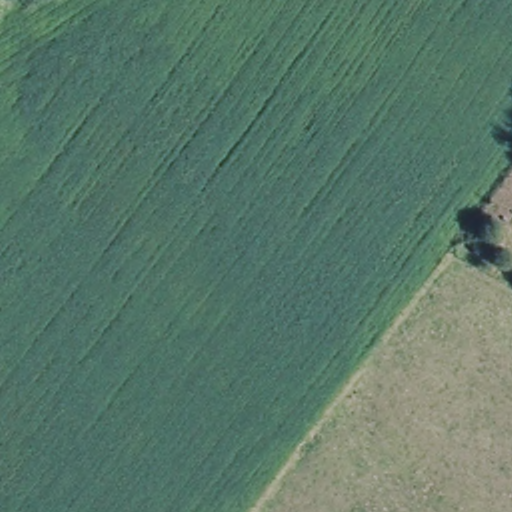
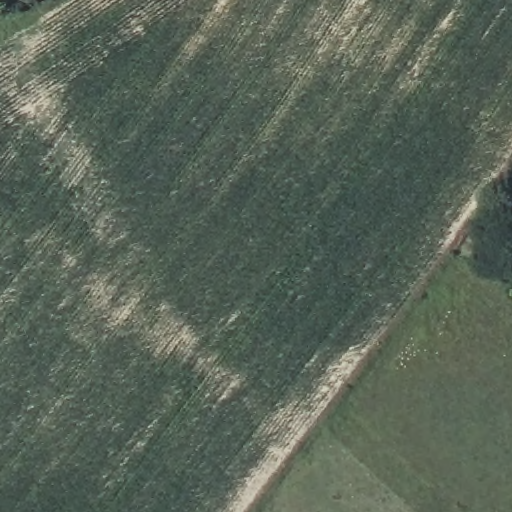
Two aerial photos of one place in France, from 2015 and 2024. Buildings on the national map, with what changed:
[]

